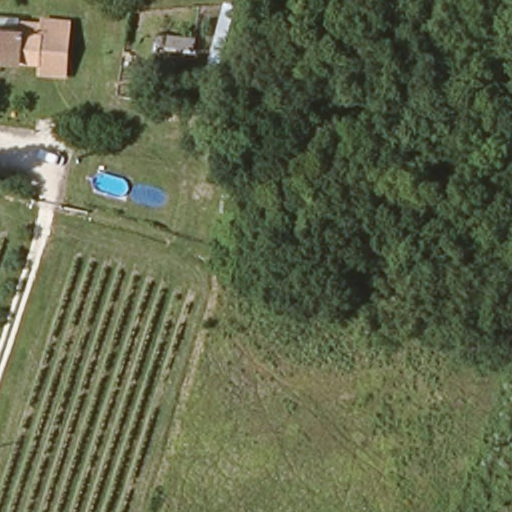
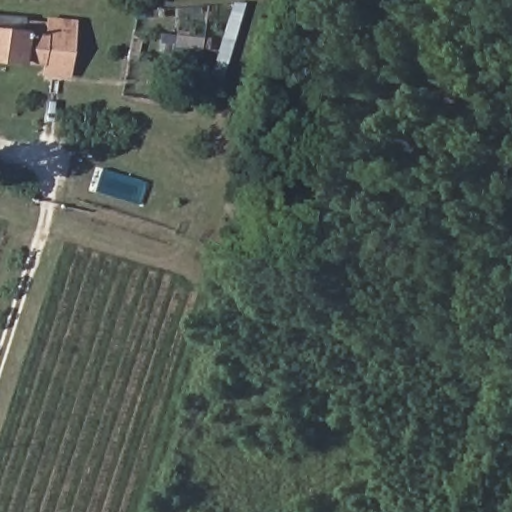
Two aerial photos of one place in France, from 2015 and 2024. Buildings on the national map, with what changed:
unchanged [(45,68),(47,33),(36,31),(39,14),(74,18),(70,79),(36,77),(36,67),(45,68)]
unchanged [(25,28),(36,31),(47,33),(45,68),(36,67),(21,66),(0,65),(0,27),(25,28)]
unchanged [(193,47),(190,57),(165,50),(167,41),(193,47)]

